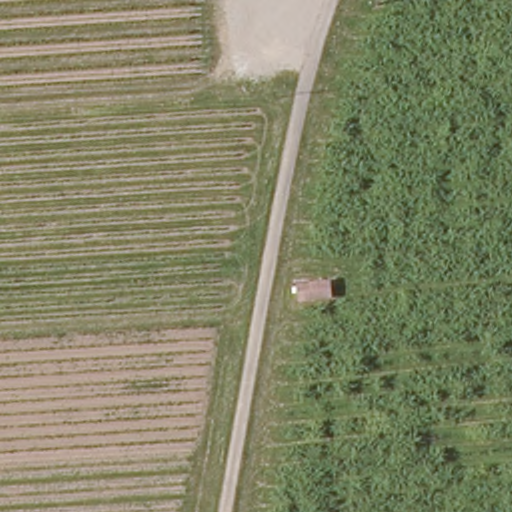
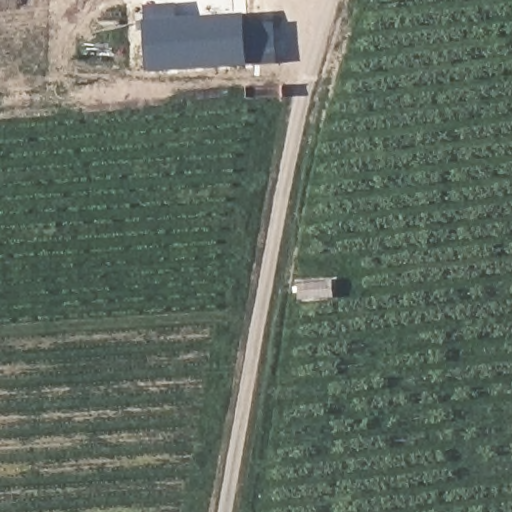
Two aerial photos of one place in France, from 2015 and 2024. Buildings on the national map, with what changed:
new [(145,20),(147,20),(146,6),(180,4),(180,17),(247,15),(248,24),(277,21),(279,63),(248,66),(150,72),(145,20)]
unchanged [(335,300),(301,304),(300,284),(333,280),(335,300)]

